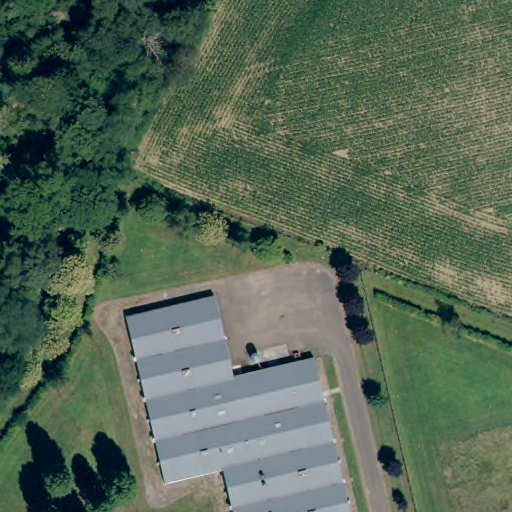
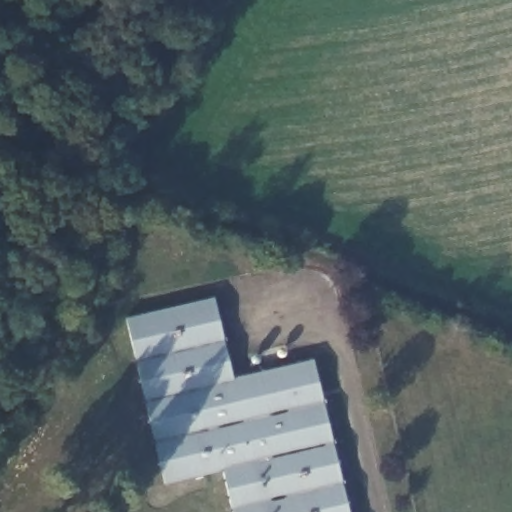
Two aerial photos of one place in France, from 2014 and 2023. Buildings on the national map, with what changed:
unchanged [(354,512),(238,512),(227,465),(170,479),(131,312),(217,293),(236,373),(318,354),(354,512)]

